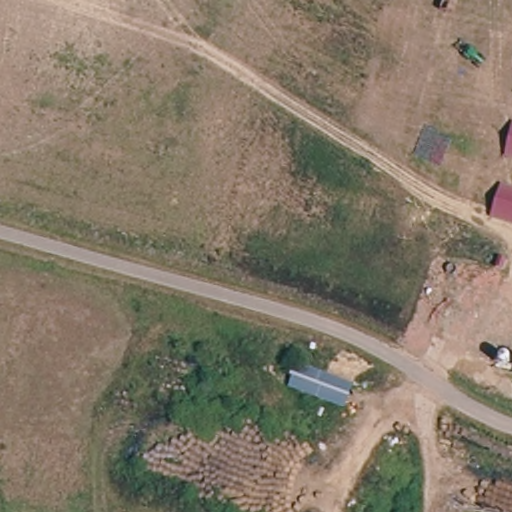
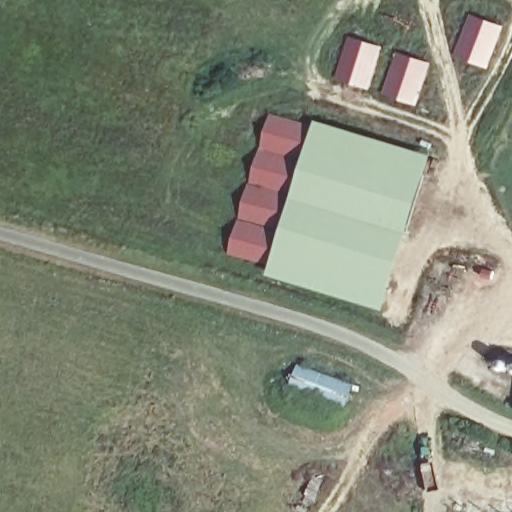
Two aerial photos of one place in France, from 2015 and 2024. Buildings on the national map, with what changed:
new [(345,34),(382,44),(368,90),(331,79),(345,34)]
new [(394,50),(431,61),(416,106),(379,94),(394,50)]
new [(268,275),(310,139),(425,174),(384,310),(268,275)]
unchanged [(305,371),(354,390),(347,410),(297,391),(305,371)]

